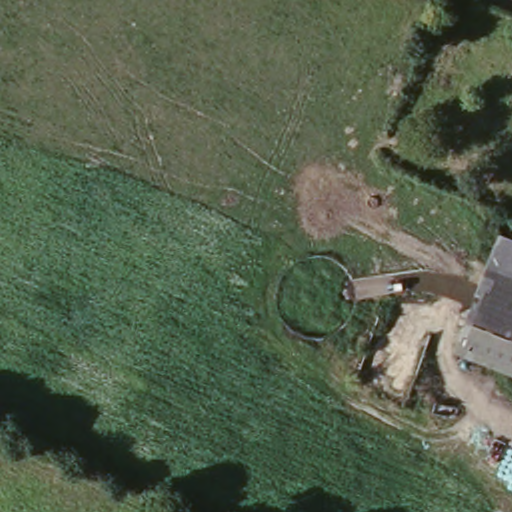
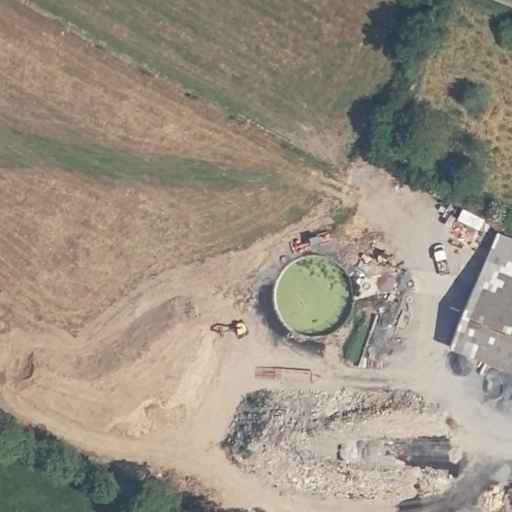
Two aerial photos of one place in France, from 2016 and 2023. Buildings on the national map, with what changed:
unchanged [(450,346),(501,228),(511,232),(460,350),(450,346)]
unchanged [(512,232),(512,373),(460,350),(511,232),(512,232)]

